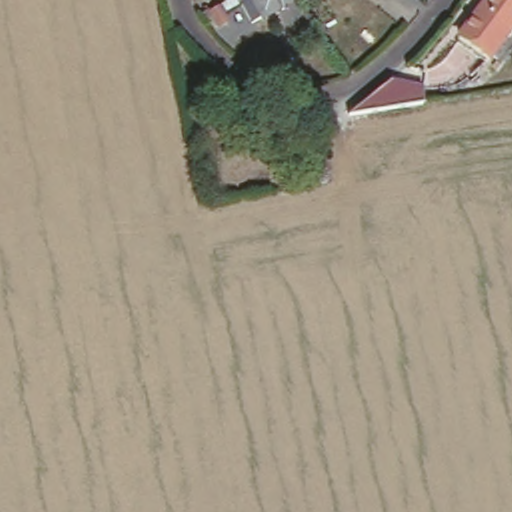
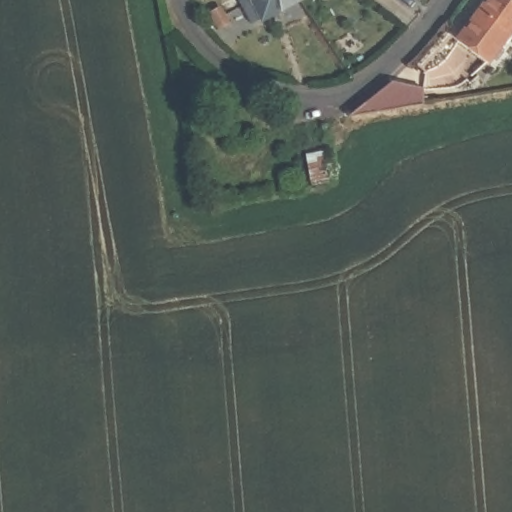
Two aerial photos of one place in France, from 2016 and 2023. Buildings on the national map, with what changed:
unchanged [(255,0),(308,0),(302,4),(253,29),(244,12),(258,4),(255,0)]
unchanged [(491,0),(512,0),(512,30),(493,60),(463,40),(491,0)]
unchanged [(222,34),(218,26),(213,18),(224,12),(229,20),(233,28),(222,34)]
unchanged [(424,89),(422,105),(352,114),(394,80),(424,89)]

